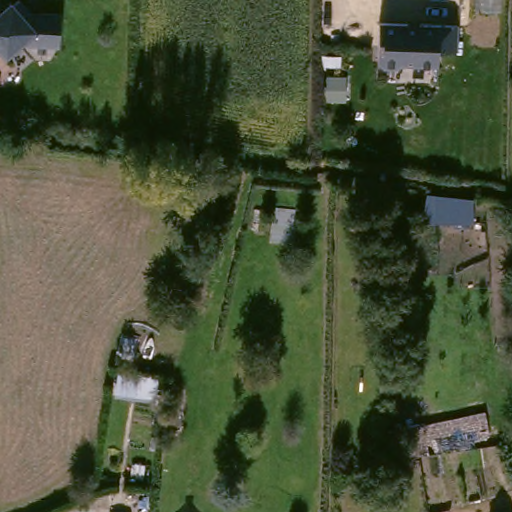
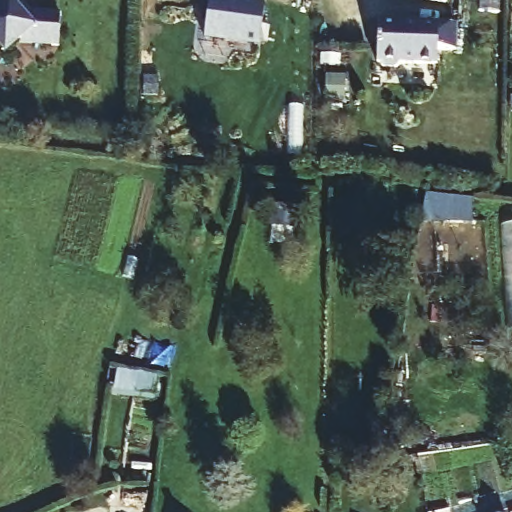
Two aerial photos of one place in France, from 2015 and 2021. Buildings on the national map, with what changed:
unchanged [(19,39),(6,51),(0,45),(0,0),(3,3),(7,0),(13,0),(22,0),(30,9),(61,11),(59,42),(19,39)]
new [(209,0),(237,0),(264,4),(259,42),(205,35),(209,0)]
unchanged [(376,23),(455,25),(454,50),(436,49),(435,64),(399,64),(395,67),(381,67),(377,64),(375,63),(376,23)]
unchanged [(435,221),(423,221),(427,195),(472,200),(472,224),(435,221)]

